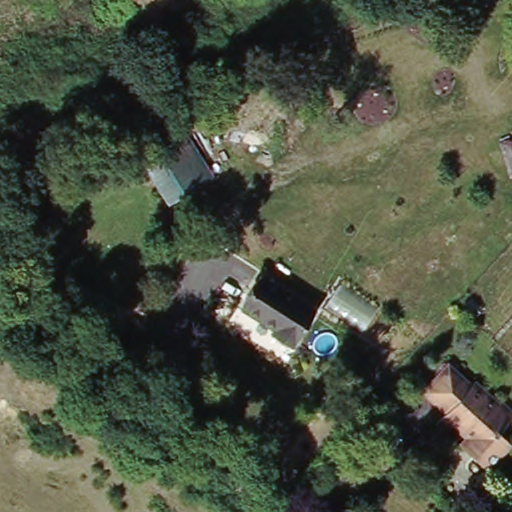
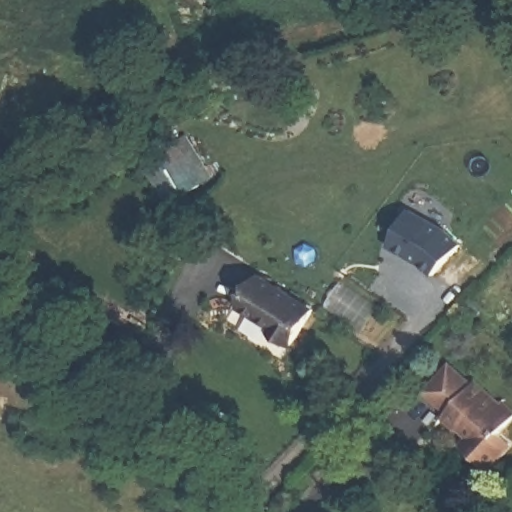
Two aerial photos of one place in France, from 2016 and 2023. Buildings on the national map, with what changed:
unchanged [(142,159),(165,133),(172,125),(217,164),(211,172),(188,199),(142,159)]
new [(405,208),(442,226),(462,245),(435,274),(422,262),(387,244),(405,208)]
unchanged [(103,304),(81,326),(52,304),(75,279),(103,304)]
unchanged [(270,341),(277,334),(246,308),(272,279),(317,318),(285,353),(270,341)]
unchanged [(471,440),(461,431),(455,438),(441,424),(446,419),(424,398),(451,371),(472,391),(477,386),(500,410),(503,406),(512,414),(512,430),(500,442),(511,451),(487,476),(460,452),(471,440)]

